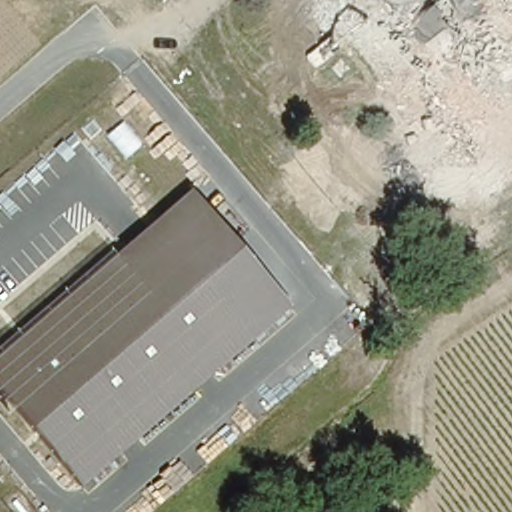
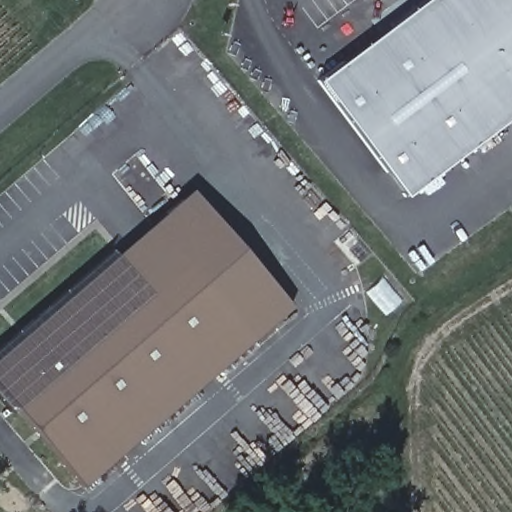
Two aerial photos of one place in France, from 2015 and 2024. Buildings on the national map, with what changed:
new [(512,0),(512,117),(406,197),(317,79),(422,0),(512,0)]
demolished [(345,0),(512,0),(512,77),(460,129),(345,0)]
demolished [(323,190),(295,158),(336,128),(360,161),(323,190)]
unchanged [(84,488),(0,395),(0,349),(188,189),(291,306),(84,488)]

